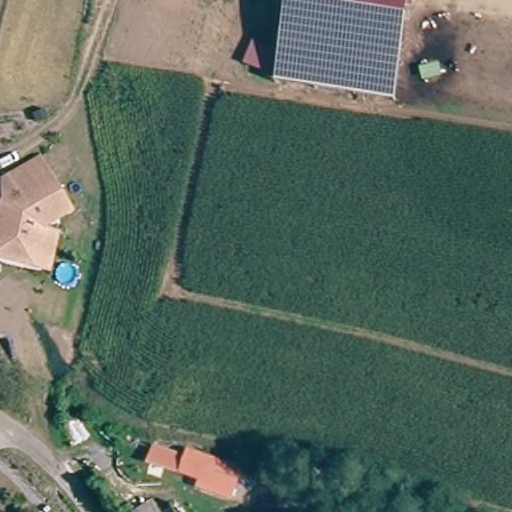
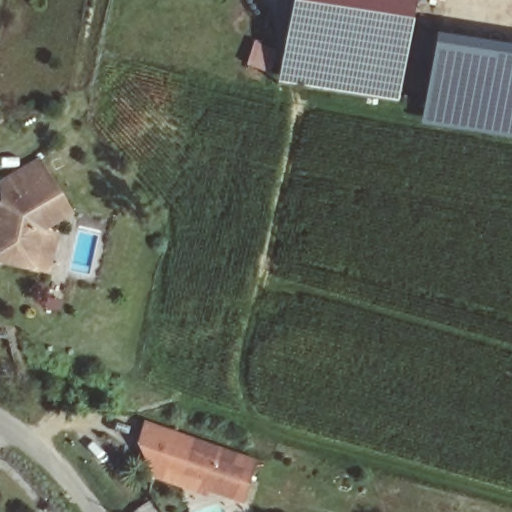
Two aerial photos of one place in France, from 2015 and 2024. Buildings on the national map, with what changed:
unchanged [(397,104),(278,86),(291,0),(412,0),(397,104)]
new [(420,126),(434,32),(512,44),(512,139),(420,126)]
unchanged [(29,260),(0,254),(0,208),(6,210),(10,191),(2,175),(39,157),(46,172),(64,209),(37,222),(29,260)]
unchanged [(244,468),(235,502),(195,488),(198,480),(145,463),(152,445),(186,455),(187,449),(244,468)]
unchanged [(134,512),(160,498),(167,512),(134,512)]

